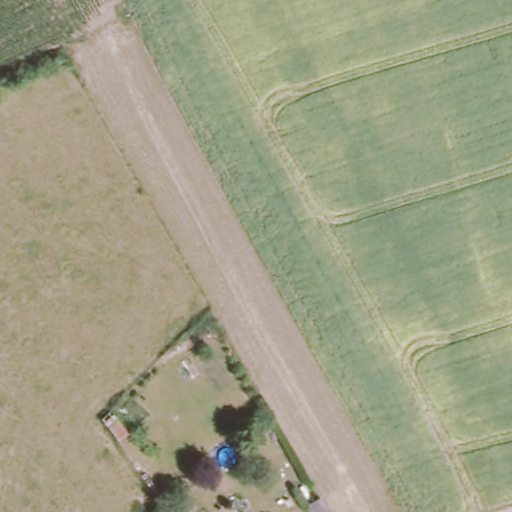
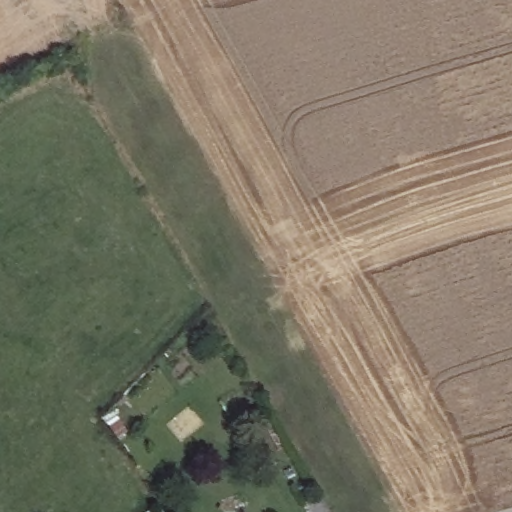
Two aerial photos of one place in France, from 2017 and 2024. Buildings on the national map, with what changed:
unchanged [(126,429),(117,435),(105,416),(113,410),(126,429)]
unchanged [(317,496),(326,512),(308,512),(303,504),(317,496)]

